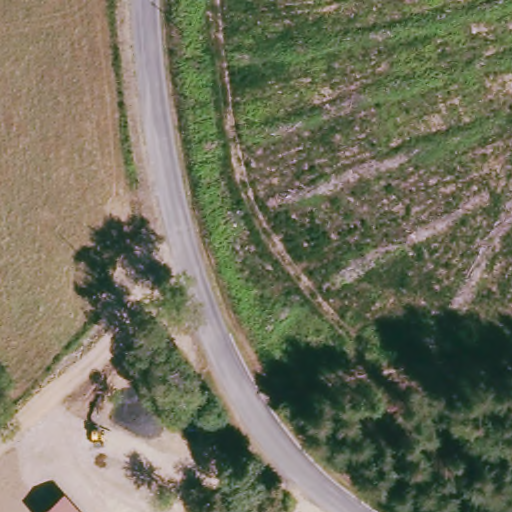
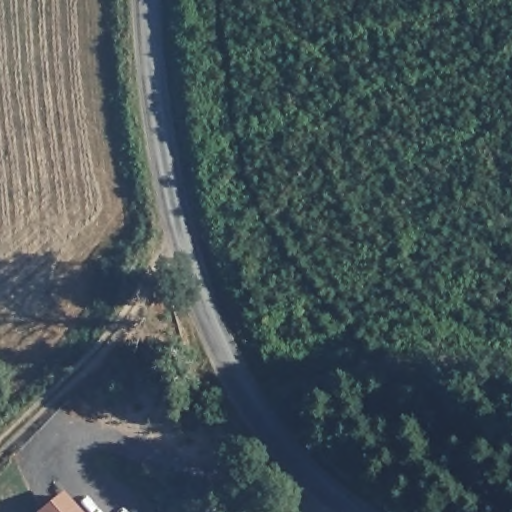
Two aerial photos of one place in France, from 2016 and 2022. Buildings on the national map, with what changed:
unchanged [(39,512),(64,490),(84,512),(39,512)]

